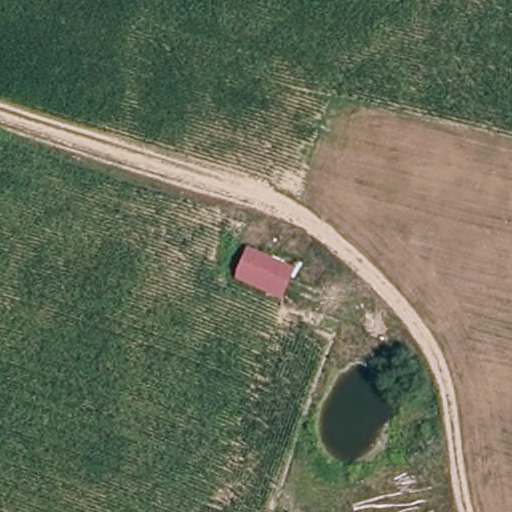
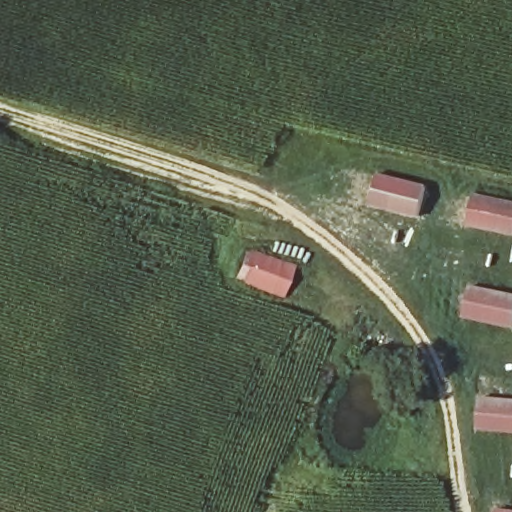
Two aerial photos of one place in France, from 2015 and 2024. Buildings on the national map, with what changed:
new [(378,173),(427,185),(418,219),(369,207),(378,173)]
new [(512,201),(512,235),(468,227),(474,193),(512,201)]
unchanged [(245,247),(295,268),(282,301),(233,280),(245,247)]
new [(512,294),(512,325),(511,329),(462,318),(469,285),(512,294)]
new [(512,399),(512,434),(477,432),(479,396),(512,399)]
new [(512,510),(512,512),(495,512),(496,508),(512,510)]

